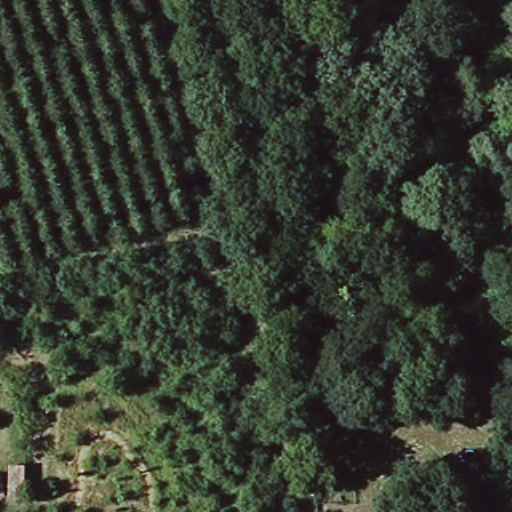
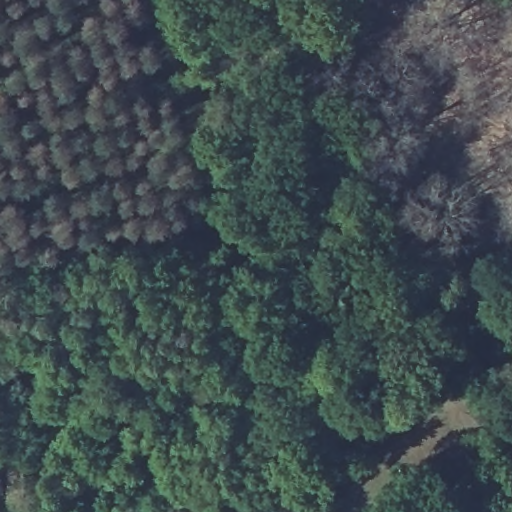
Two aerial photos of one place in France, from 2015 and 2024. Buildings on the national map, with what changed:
unchanged [(25,465),(25,502),(0,501),(0,476),(8,476),(7,464),(25,465)]

